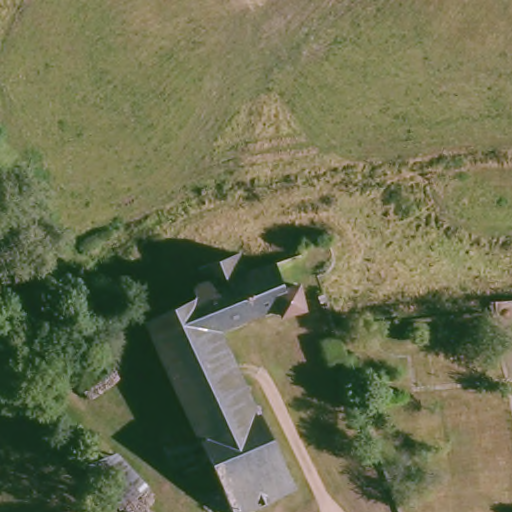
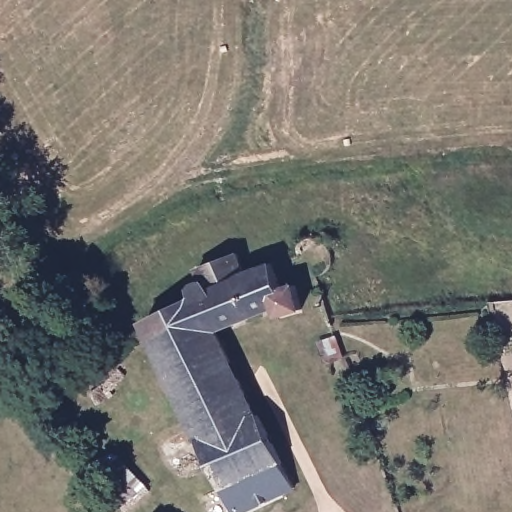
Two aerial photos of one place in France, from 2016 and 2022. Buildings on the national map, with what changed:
unchanged [(192,286),(202,278),(197,267),(238,251),(246,271),(261,312),(219,331),(257,415),(263,416),(296,485),(247,512),(232,512),(140,321),(194,297),(192,286)]
unchanged [(246,271),(278,261),(285,286),(300,285),(305,310),(285,315),(280,304),(261,312),(246,271)]

